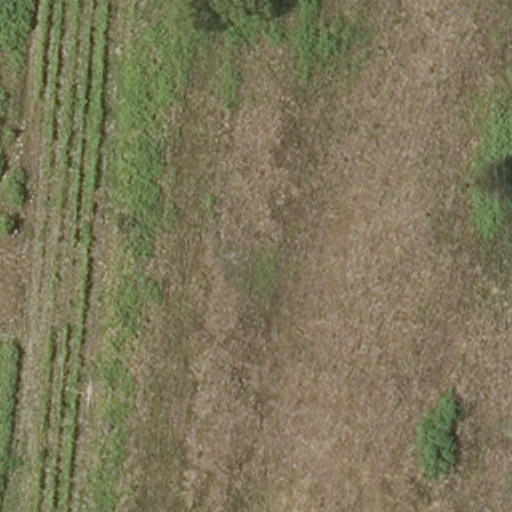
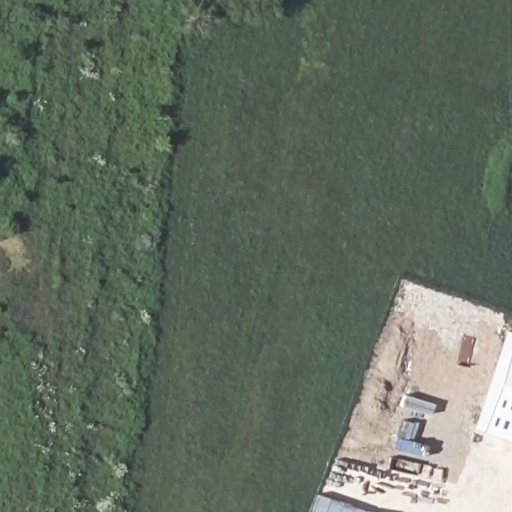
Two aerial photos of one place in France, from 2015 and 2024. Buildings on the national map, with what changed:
new [(477,429),(510,331),(512,332),(512,441),(477,429)]

